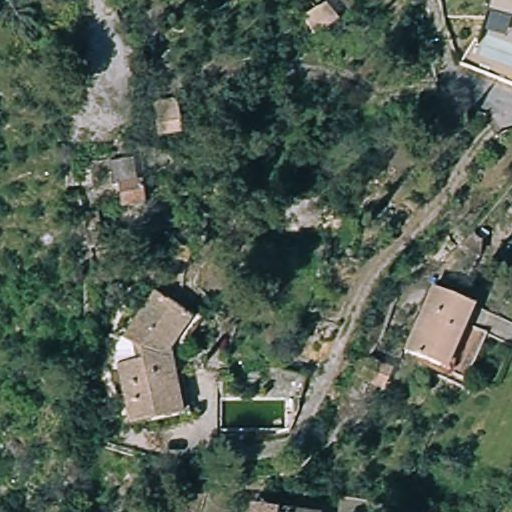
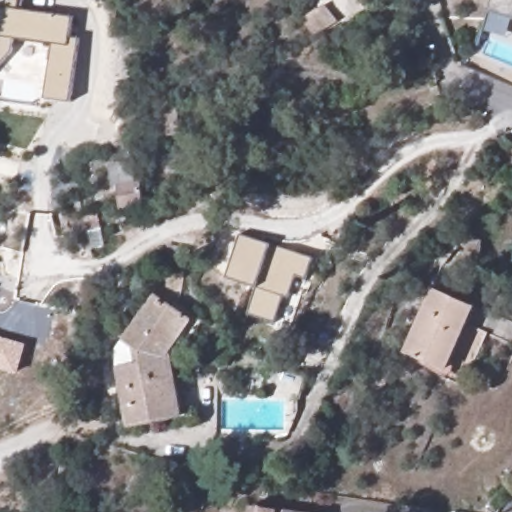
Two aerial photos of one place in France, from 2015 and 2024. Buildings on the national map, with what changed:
new [(22,10),(73,17),(70,40),(78,40),(71,102),(45,100),(53,45),(15,40),(12,52),(0,67),(0,0),(23,0),(22,10)]
demolished [(298,17),(305,12),(309,8),(319,0),(334,19),(309,35),(298,17)]
unchanged [(489,12),(492,0),(512,0),(512,19),(489,12)]
demolished [(146,102),(170,99),(175,134),(151,137),(146,102)]
unchanged [(138,177),(141,197),(118,200),(115,181),(138,177)]
unchanged [(78,212),(95,209),(96,227),(81,228),(78,212)]
new [(314,258),(306,281),(296,277),(289,298),(283,297),(275,325),(246,315),(255,289),(225,278),(240,236),(314,258)]
demolished [(188,248),(184,261),(163,252),(168,241),(188,248)]
unchanged [(400,348),(428,285),(471,303),(444,367),(400,348)]
unchanged [(178,415),(171,417),(124,426),(112,367),(130,362),(127,347),(119,342),(150,296),(181,316),(187,320),(170,345),(163,356),(155,361),(157,372),(161,371),(168,370),(178,415)]
new [(18,376),(0,371),(0,337),(26,344),(18,376)]
unchanged [(63,503),(65,512),(55,512),(53,505),(63,503)]
unchanged [(297,512),(240,512),(241,505),(297,512)]

